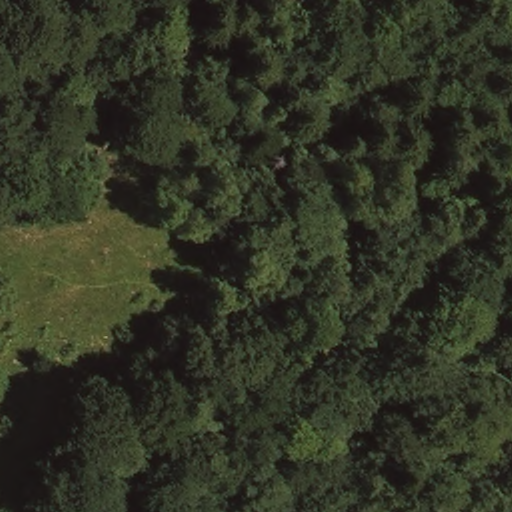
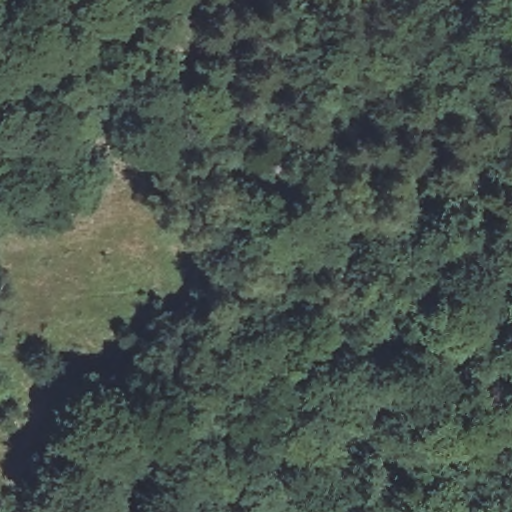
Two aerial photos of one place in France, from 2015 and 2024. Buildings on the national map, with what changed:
[]

